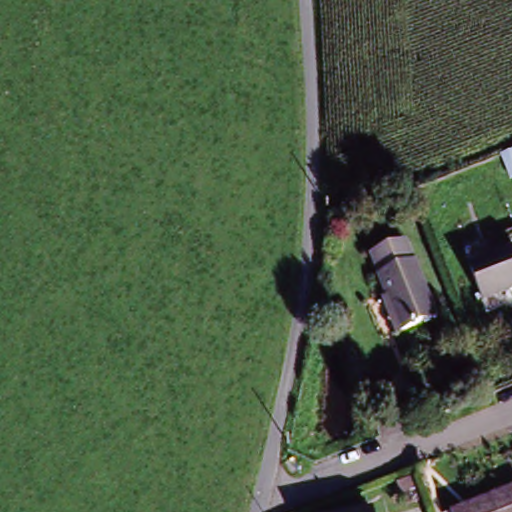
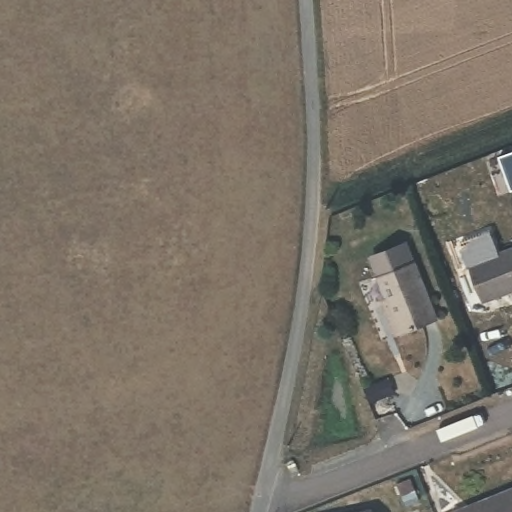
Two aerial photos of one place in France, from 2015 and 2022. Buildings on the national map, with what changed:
unchanged [(468,265),(512,250),(512,291),(481,302),(468,265)]
unchanged [(384,306),(392,303),(385,283),(378,265),(412,253),(419,271),(439,326),(405,338),(398,341),(384,306)]
unchanged [(467,503),(512,485),(512,512),(449,512),(449,510),(467,503)]
unchanged [(351,512),(371,507),(372,512),(351,512)]

